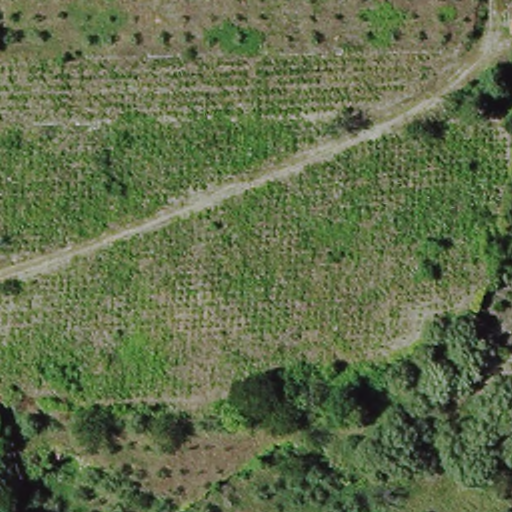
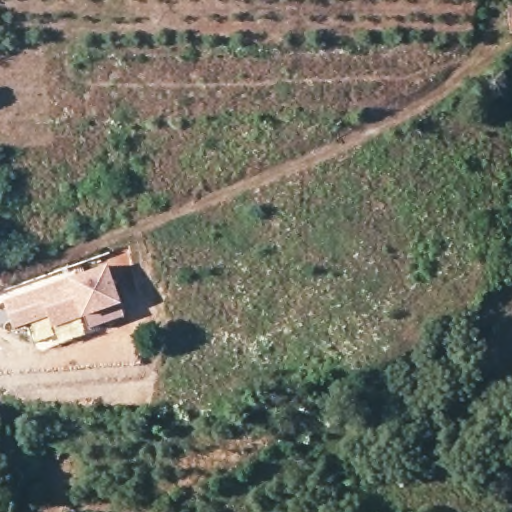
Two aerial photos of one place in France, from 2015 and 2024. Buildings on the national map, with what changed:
unchanged [(510,39),(510,17),(512,17),(512,39),(510,39)]
new [(107,262),(126,312),(89,327),(83,311),(50,324),(45,313),(17,323),(9,299),(107,262)]

